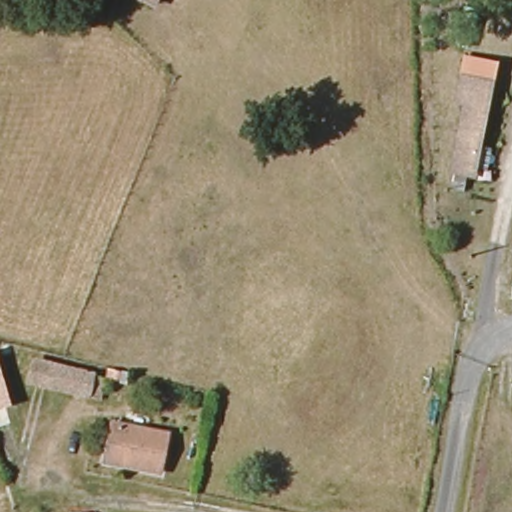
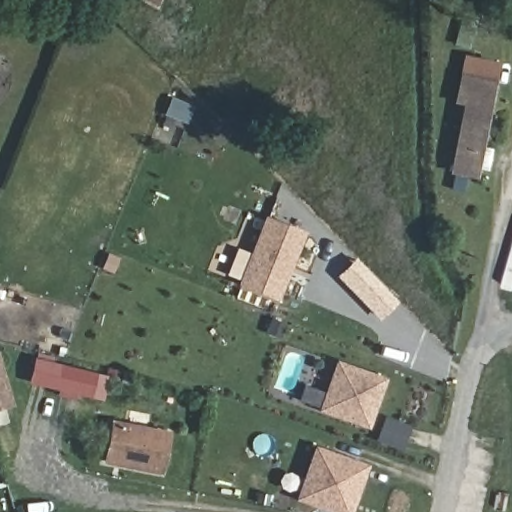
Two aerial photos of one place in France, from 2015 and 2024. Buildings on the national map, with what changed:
new [(139,0),(153,0),(151,6),(139,0)]
unchanged [(454,106),(462,77),(494,84),(476,181),(449,176),(463,107),(454,106)]
new [(263,220),(299,234),(273,298),(237,284),(263,220)]
new [(336,276),(355,257),(397,301),(378,320),(336,276)]
unchanged [(82,371),(85,365),(99,368),(97,378),(107,383),(100,402),(28,387),(34,359),(82,371)]
new [(317,411),(335,359),(387,377),(367,427),(317,411)]
new [(0,365),(12,405),(0,408),(0,365)]
unchanged [(170,437),(163,473),(107,464),(112,426),(170,437)]
new [(352,512),(330,512),(294,499),(313,445),(368,463),(352,512)]

